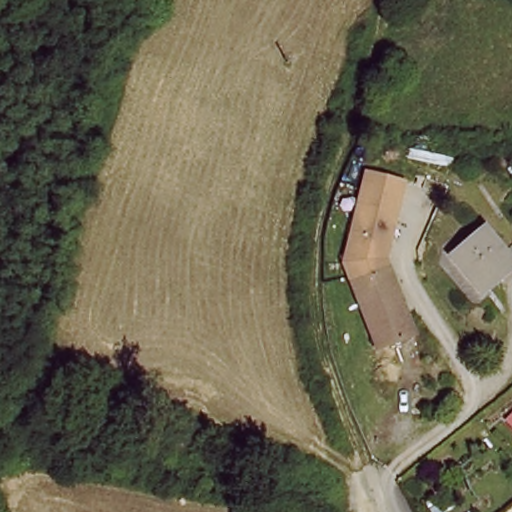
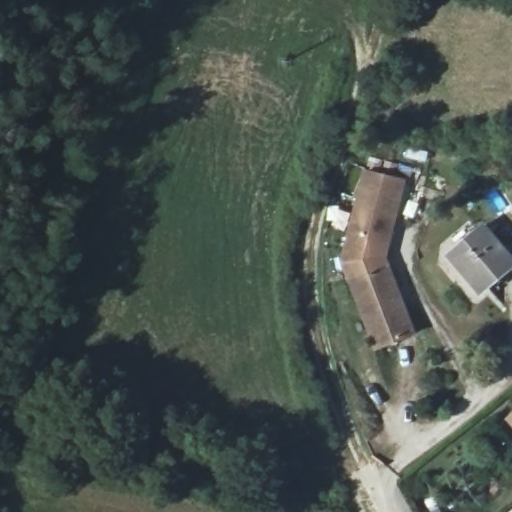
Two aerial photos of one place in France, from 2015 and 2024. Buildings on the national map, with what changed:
unchanged [(352,287),(344,262),(367,170),(410,181),(391,258),(392,268),(352,287)]
unchanged [(482,231),(504,252),(512,246),(512,274),(485,298),(449,260),(482,231)]
unchanged [(379,356),(352,287),(392,268),(419,340),(379,356)]

